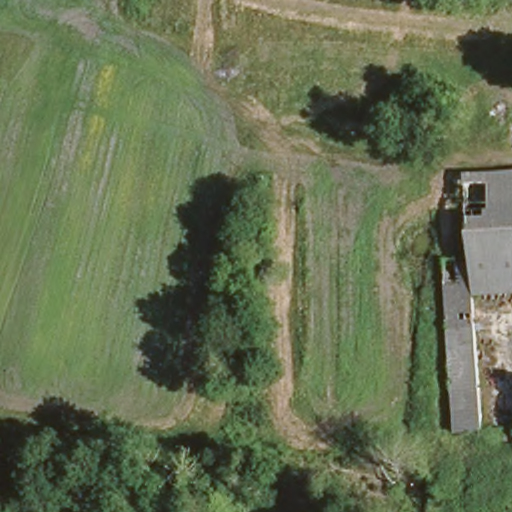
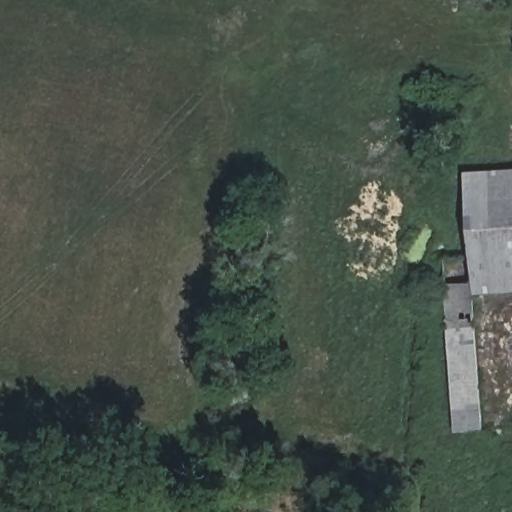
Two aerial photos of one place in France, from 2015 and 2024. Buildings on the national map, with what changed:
unchanged [(477,296),(486,433),(454,434),(444,261),(470,260),(467,170),(512,167),(512,293),(477,296)]

